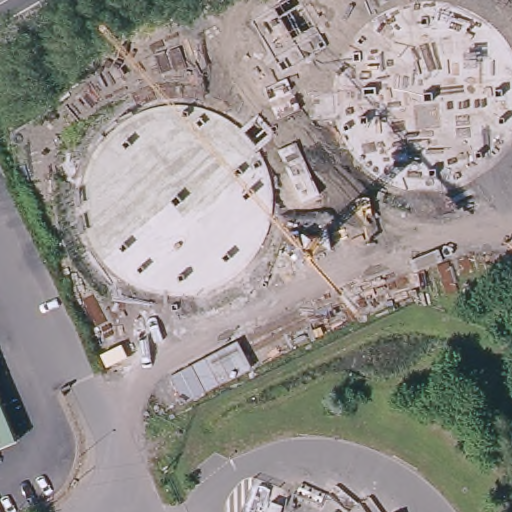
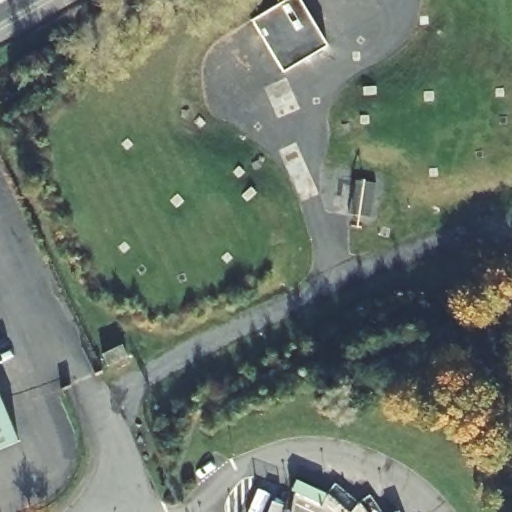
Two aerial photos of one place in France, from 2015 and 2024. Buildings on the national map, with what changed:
new [(253,26),(295,0),(297,0),(328,51),(282,78),(253,26)]
unchanged [(13,439),(0,444),(0,408),(13,439)]

